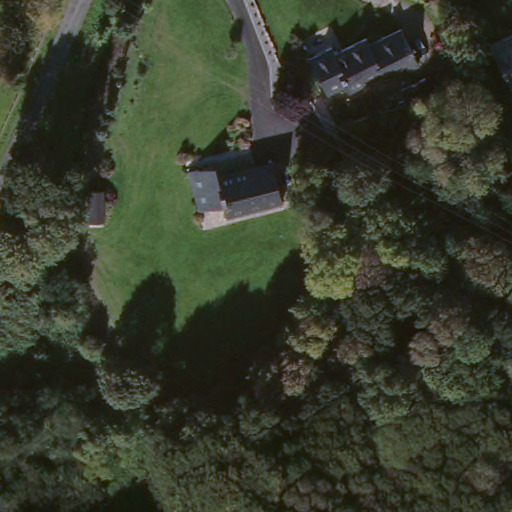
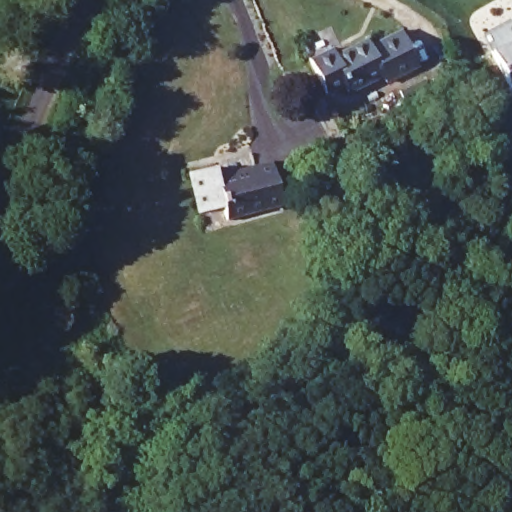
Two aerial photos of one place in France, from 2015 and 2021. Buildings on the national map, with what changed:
unchanged [(417,73),(383,92),(381,87),(344,103),(342,99),(326,106),(307,72),(327,62),(330,66),(362,50),(366,56),(398,40),(417,73)]
unchanged [(512,47),(512,95),(502,100),(488,70),(483,61),(512,47)]
unchanged [(438,93),(411,106),(404,92),(404,89),(429,77),(433,83),(438,93)]
unchanged [(234,167),(238,180),(291,166),(303,210),(247,227),(244,215),(219,220),(207,175),(234,167)]

